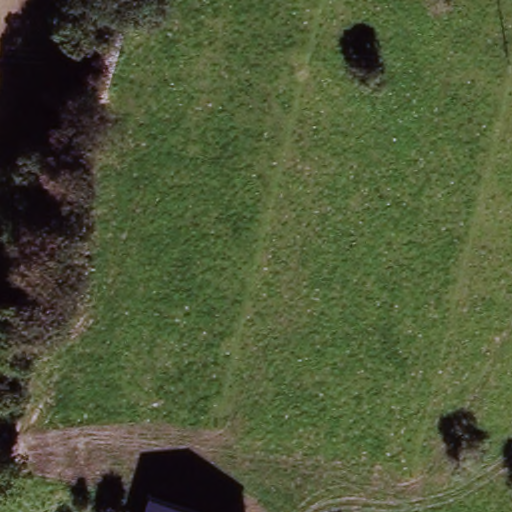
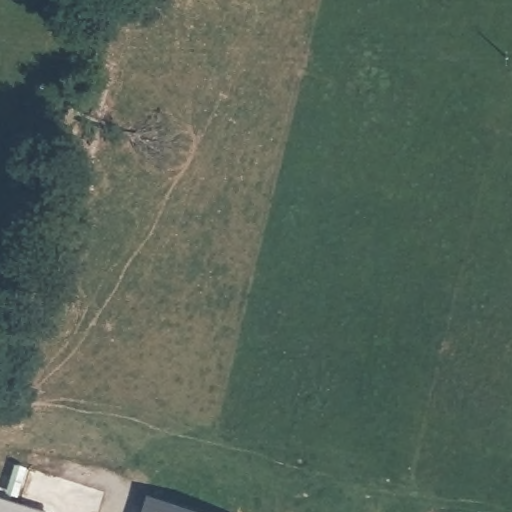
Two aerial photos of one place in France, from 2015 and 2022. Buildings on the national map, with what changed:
new [(48,512),(0,512),(0,497),(48,512)]
unchanged [(151,503),(178,512),(147,512),(151,503)]

